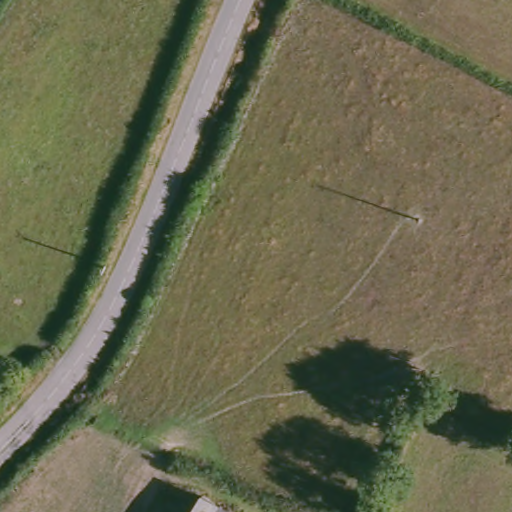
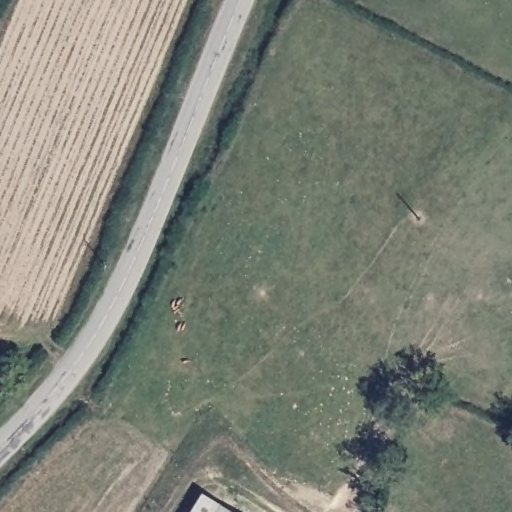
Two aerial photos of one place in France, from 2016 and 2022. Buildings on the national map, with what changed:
unchanged [(236,512),(194,512),(206,493),(236,512)]

